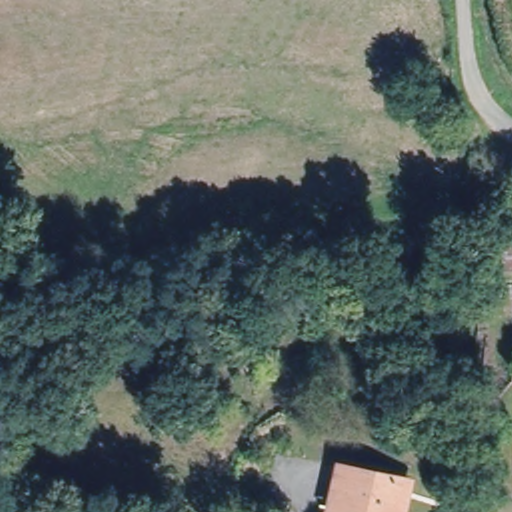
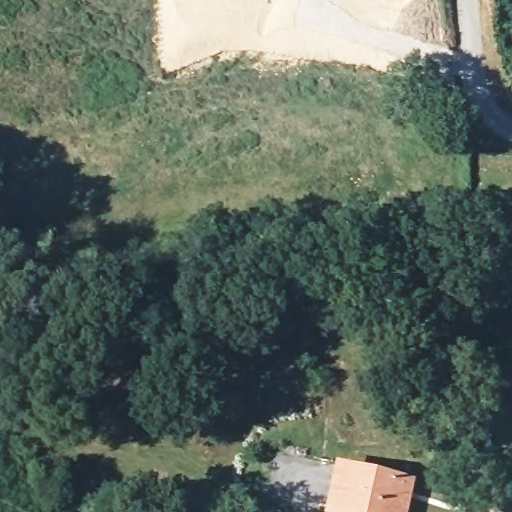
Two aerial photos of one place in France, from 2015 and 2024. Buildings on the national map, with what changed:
unchanged [(405,478),(399,512),(337,512),(326,510),(336,466),(405,478)]

